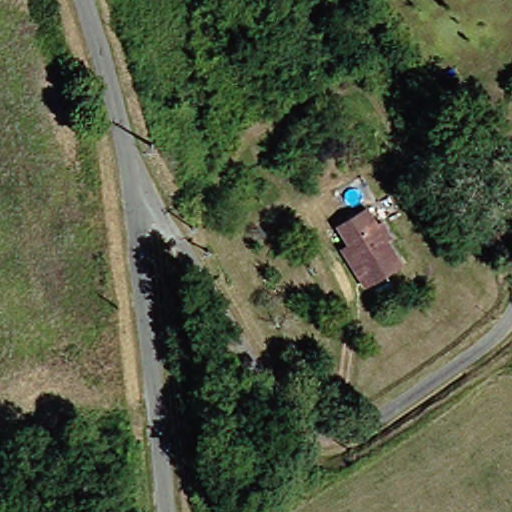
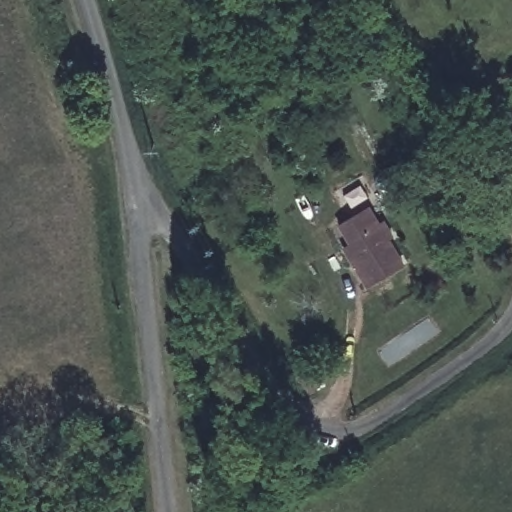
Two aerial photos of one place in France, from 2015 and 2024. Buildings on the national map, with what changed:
unchanged [(355,241),(345,225),(371,207),(400,249),(406,245),(414,258),(375,284),(355,255),(348,245),(355,241)]
unchanged [(320,389),(307,370),(322,360),(334,378),(320,389)]

